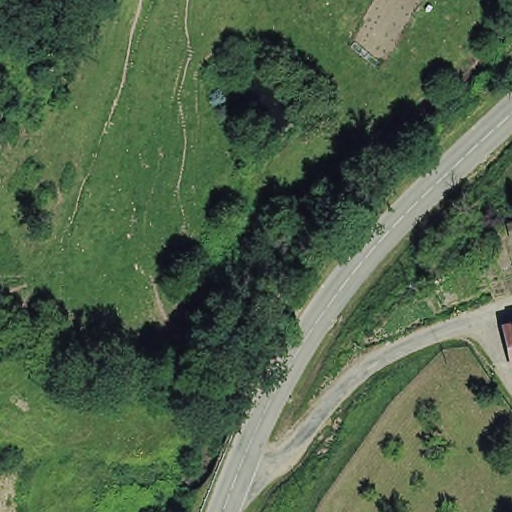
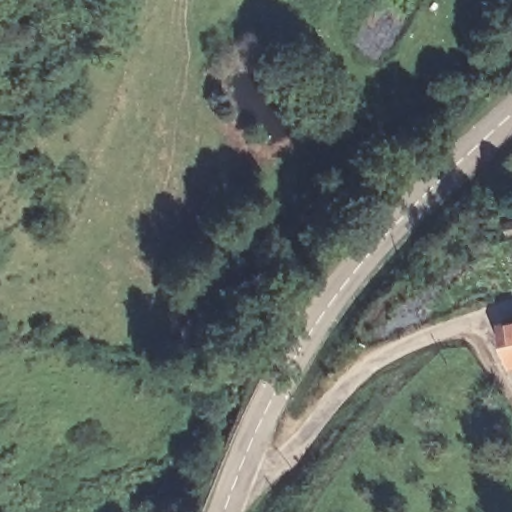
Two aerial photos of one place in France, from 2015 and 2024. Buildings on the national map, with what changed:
unchanged [(510,316),(512,316),(512,327),(510,316)]

